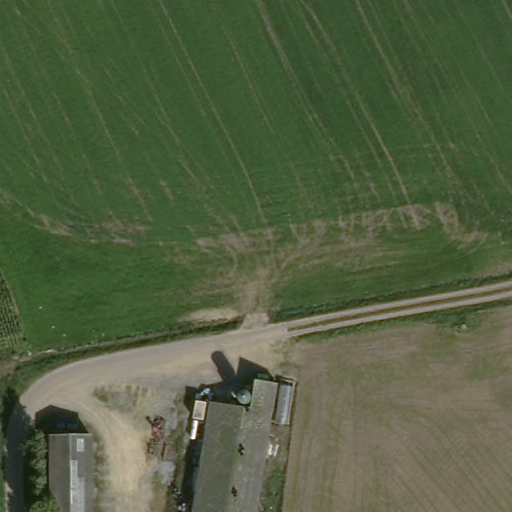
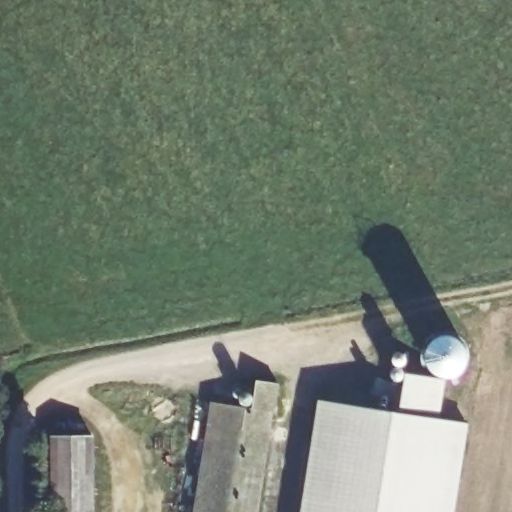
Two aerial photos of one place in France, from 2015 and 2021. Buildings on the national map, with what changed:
new [(401,413),(407,373),(446,379),(440,418),(470,423),(455,512),(302,512),(320,399),(401,413)]
unchanged [(253,377),(285,382),(266,512),(201,512),(218,400),(252,408),(253,377)]
unchanged [(96,439),(93,512),(49,512),(50,438),(96,439)]

